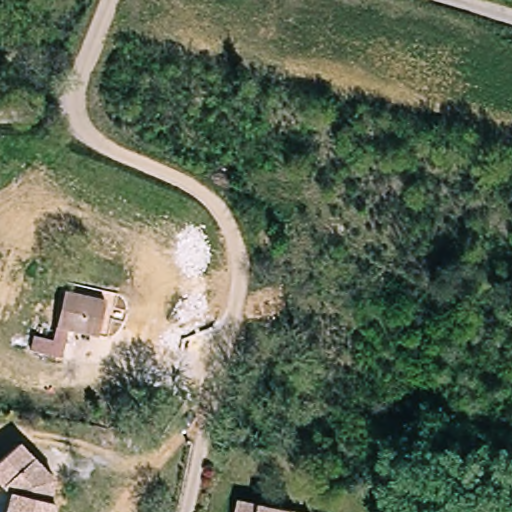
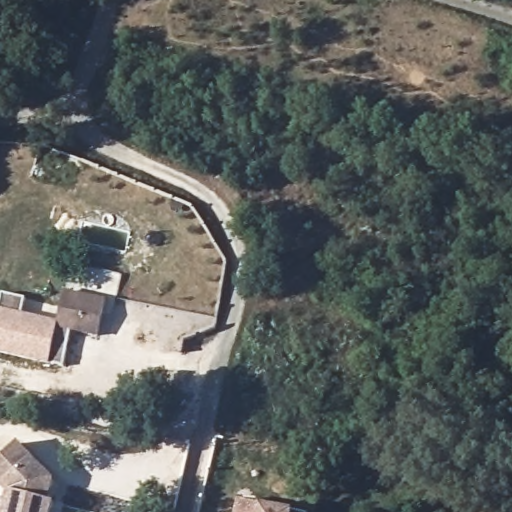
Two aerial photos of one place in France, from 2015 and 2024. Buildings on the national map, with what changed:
new [(32,341),(32,357),(68,361),(65,366),(50,362),(49,364),(0,352),(0,312),(0,309),(3,295),(26,300),(23,313),(57,323),(57,341),(32,341)]
unchanged [(103,296),(100,333),(72,332),(68,361),(32,357),(32,341),(57,341),(58,295),(103,296)]
unchanged [(12,496),(0,483),(0,466),(25,443),(59,480),(52,504),(61,506),(59,512),(7,512),(12,496)]
unchanged [(241,497),(286,512),(236,512),(241,497)]

